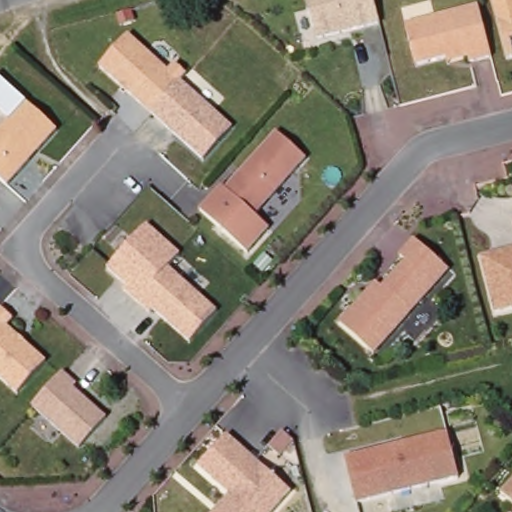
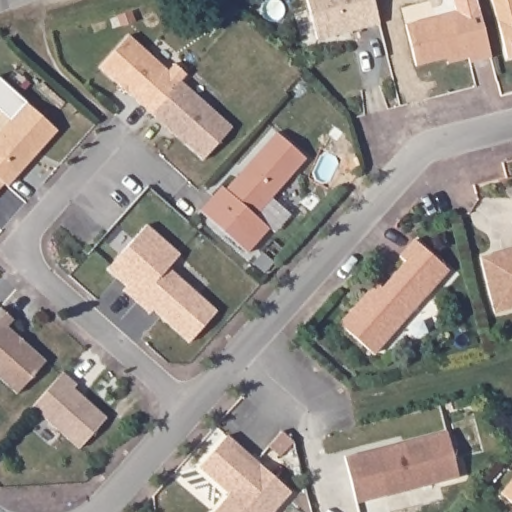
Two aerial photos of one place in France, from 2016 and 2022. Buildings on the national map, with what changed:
unchanged [(319,36),(309,0),(376,0),(382,22),(319,36)]
unchanged [(510,56),(496,0),(512,0),(512,56),(510,56)]
unchanged [(492,55),(469,61),(466,52),(420,62),(409,24),(480,4),(492,55)]
unchanged [(170,67),(179,61),(190,74),(152,112),(100,65),(130,32),(170,67)]
unchanged [(233,129),(204,160),(152,112),(180,84),(233,129)]
unchanged [(10,185),(0,174),(0,132),(26,102),(60,128),(10,185)]
unchanged [(310,158),(261,214),(274,226),(251,252),(201,205),(222,182),(229,186),(280,129),(310,158)]
unchanged [(184,250),(169,265),(220,307),(188,342),(108,268),(150,223),(184,250)]
unchanged [(379,279),(385,283),(406,262),(401,252),(416,239),(453,268),(378,352),(340,320),(379,279)]
unchanged [(512,248),(512,313),(502,316),(484,255),(512,248)]
unchanged [(18,321),(10,327),(48,360),(20,392),(0,374),(0,313),(6,307),(18,321)]
unchanged [(65,372),(80,382),(76,387),(108,415),(81,447),(34,406),(65,372)]
unchanged [(458,475),(358,502),(348,455),(449,428),(458,475)]
unchanged [(294,490),(275,512),(212,512),(231,493),(202,464),(230,434),(294,490)]
unchanged [(503,492),(512,482),(512,500),(503,492)]

